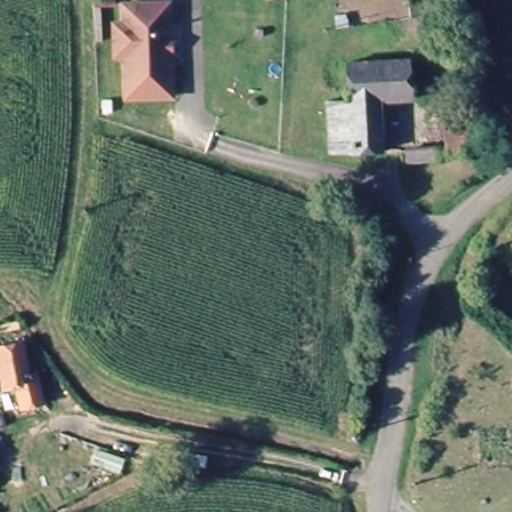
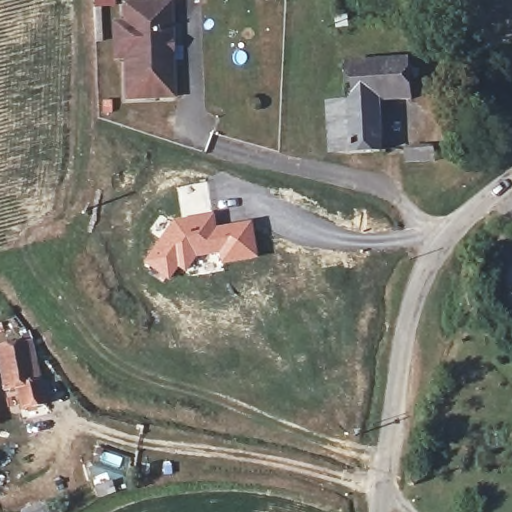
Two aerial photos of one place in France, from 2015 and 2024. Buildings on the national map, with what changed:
unchanged [(169,7),(169,27),(165,26),(165,59),(163,59),(163,71),(170,71),(171,100),(126,101),(125,60),(114,60),(114,28),(124,28),(124,9),(169,7)]
unchanged [(381,106),(385,150),(335,155),(330,104),(349,101),(346,68),(411,61),(426,60),(429,90),(414,91),(415,103),(381,106)]
unchanged [(486,124),(489,145),(449,149),(447,129),(486,124)]
unchanged [(439,144),(441,157),(414,160),(413,147),(439,144)]
new [(206,181),(211,215),(182,220),(176,187),(206,181)]
new [(170,221),(171,222),(182,220),(211,215),(215,227),(250,222),(256,260),(218,266),(216,256),(202,258),(195,262),(184,275),(177,270),(166,283),(140,261),(170,221)]
unchanged [(26,345),(34,380),(38,378),(45,408),(25,413),(20,390),(5,393),(0,366),(0,351),(26,345)]

